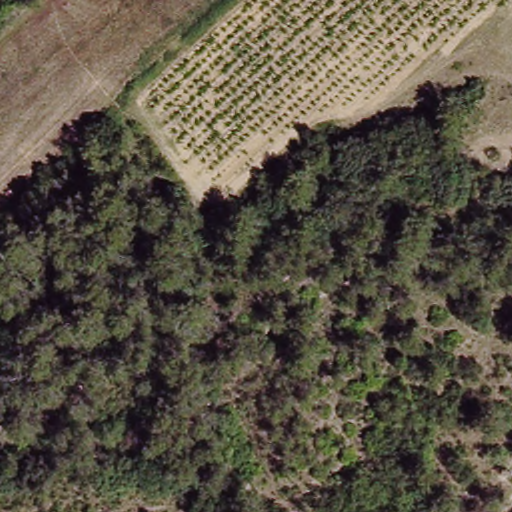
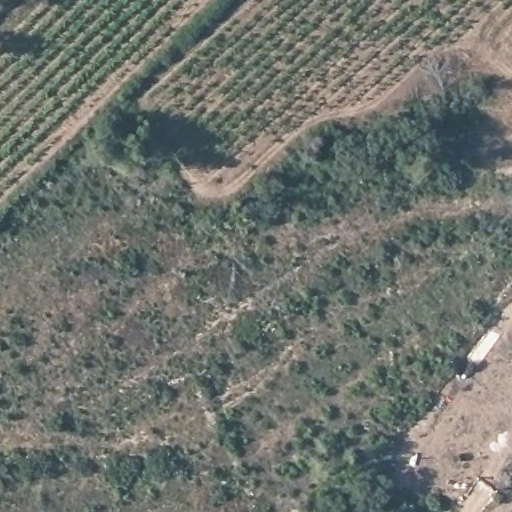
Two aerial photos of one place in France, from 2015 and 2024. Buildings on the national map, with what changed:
[]

